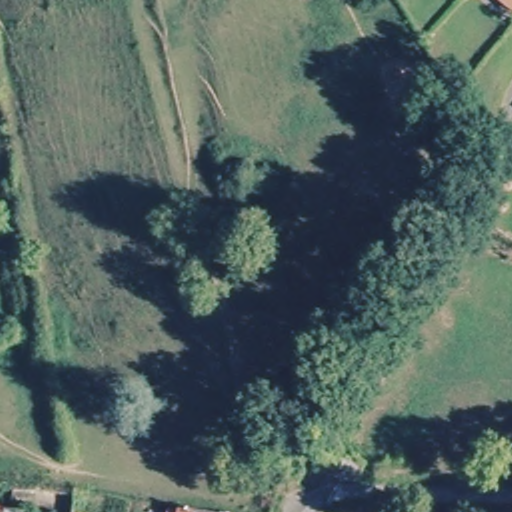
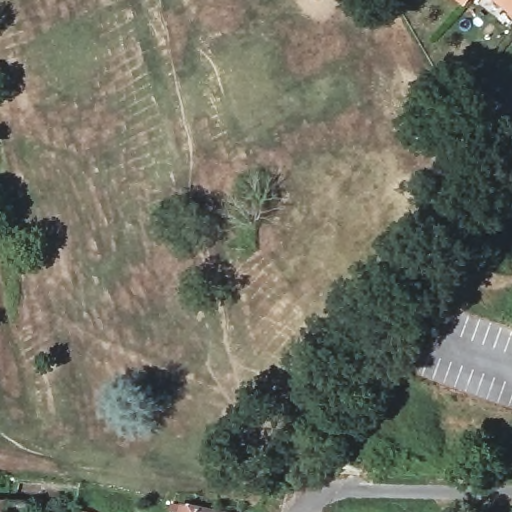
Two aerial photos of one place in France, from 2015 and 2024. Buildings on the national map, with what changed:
unchanged [(464,0),(478,0),(472,7),(464,0)]
unchanged [(512,0),(512,14),(494,0),(512,0)]

